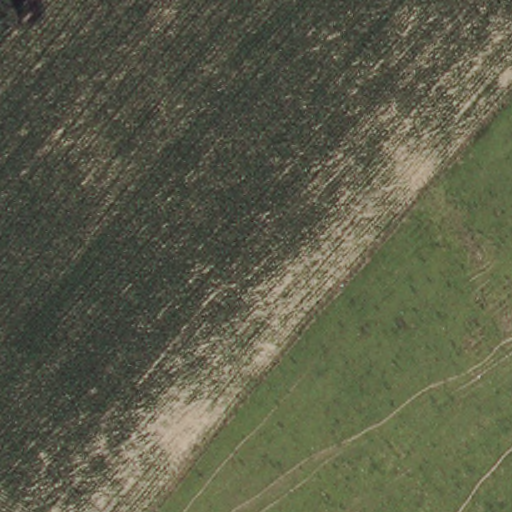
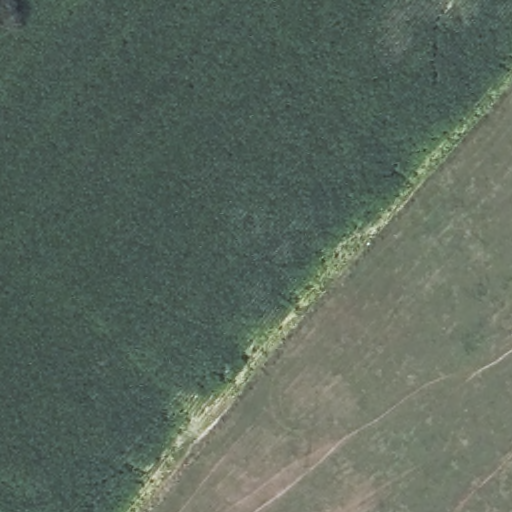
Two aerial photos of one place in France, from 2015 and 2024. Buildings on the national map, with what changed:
[]

